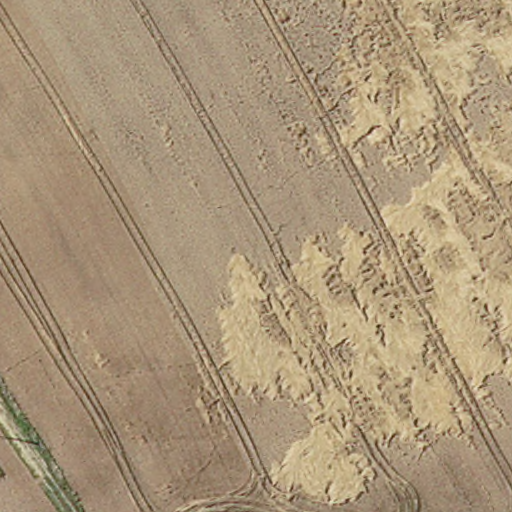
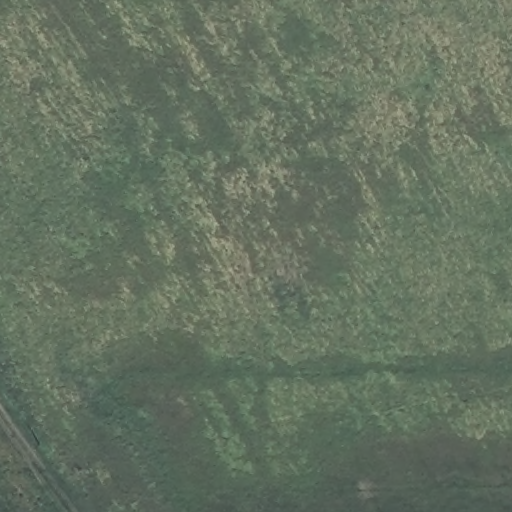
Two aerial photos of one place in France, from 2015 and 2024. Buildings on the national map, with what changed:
[]

